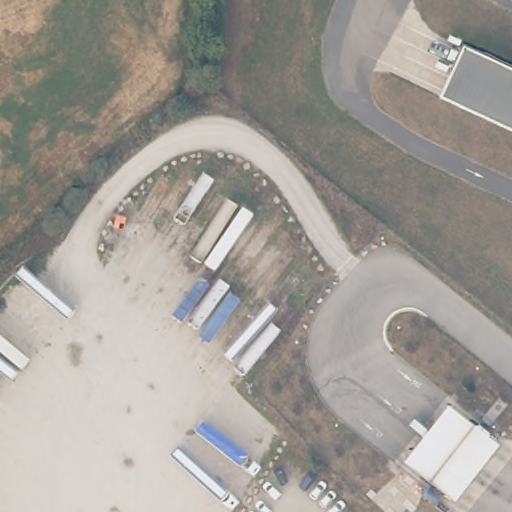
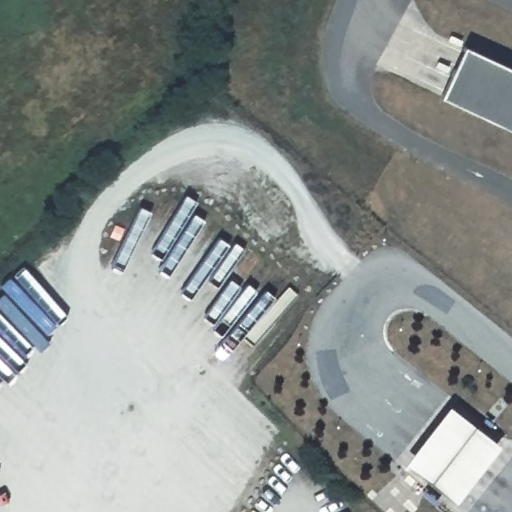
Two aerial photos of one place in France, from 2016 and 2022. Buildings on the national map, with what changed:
unchanged [(444,95),(468,45),(512,66),(512,128),(444,95)]
unchanged [(502,443),(457,501),(405,461),(450,403),(502,443)]

